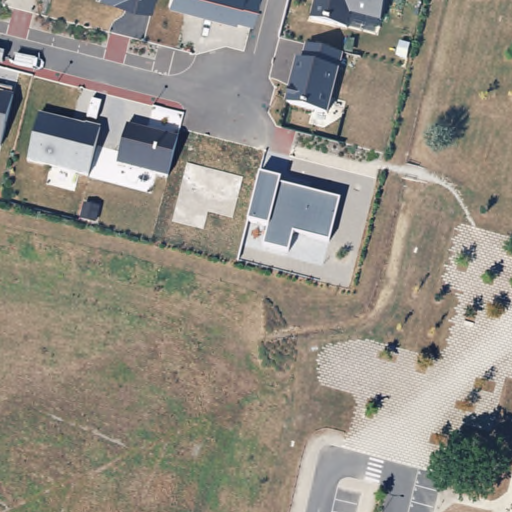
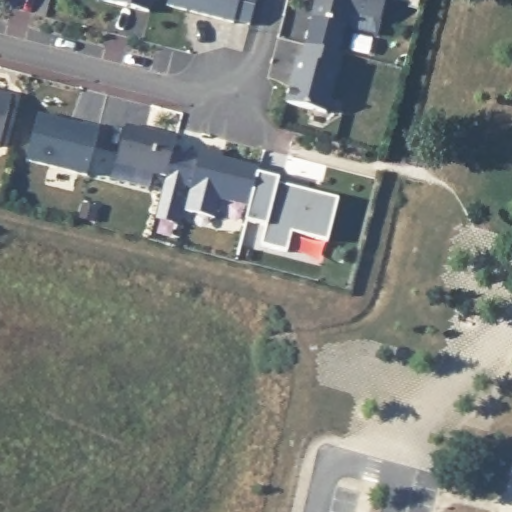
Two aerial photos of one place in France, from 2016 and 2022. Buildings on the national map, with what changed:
unchanged [(152,0),(149,11),(98,1),(98,0),(152,0)]
unchanged [(170,0),(257,0),(250,25),(235,23),(169,6),(170,0)]
unchanged [(347,14),(343,31),(308,22),(313,0),(384,0),(379,21),(347,14)]
unchanged [(338,69),(328,113),(285,104),(296,59),(302,42),(343,51),(338,69)]
unchanged [(14,96),(3,146),(0,145),(0,92),(14,96)]
unchanged [(28,159),(39,113),(100,126),(87,174),(28,159)]
unchanged [(127,123),(177,136),(167,174),(117,164),(127,123)]
new [(167,174),(173,152),(197,158),(199,148),(222,154),(221,159),(262,168),(259,174),(250,208),(218,199),(214,218),(185,211),(189,194),(189,188),(184,188),(175,224),(155,218),(167,174)]
unchanged [(329,240),(293,231),(288,249),(262,243),(267,224),(247,220),(259,174),(279,178),(277,183),(338,200),(329,240)]

